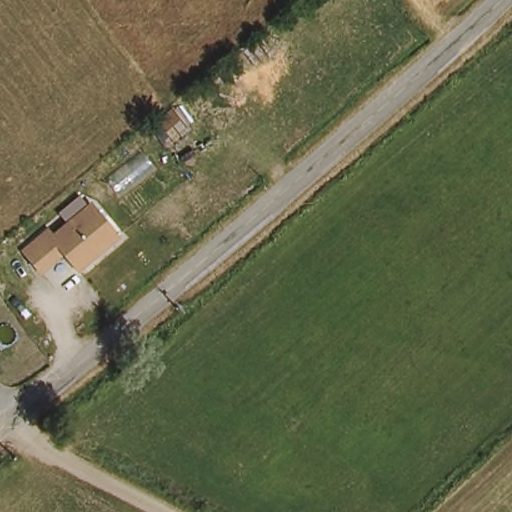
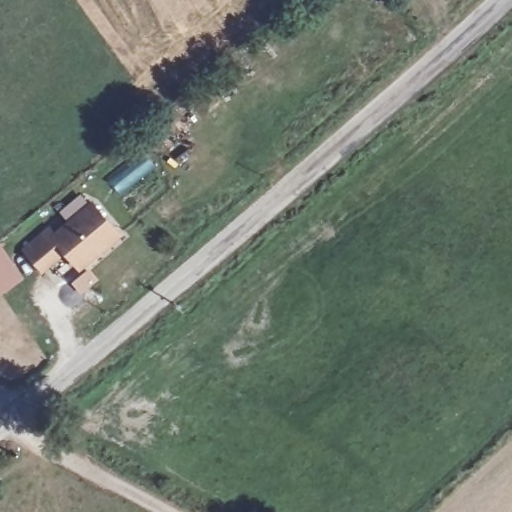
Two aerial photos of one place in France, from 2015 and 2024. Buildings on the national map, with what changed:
unchanged [(82,272),(67,255),(40,275),(22,250),(50,225),(56,230),(92,199),(124,236),(82,272)]
new [(0,296),(0,242),(25,279),(0,296)]

